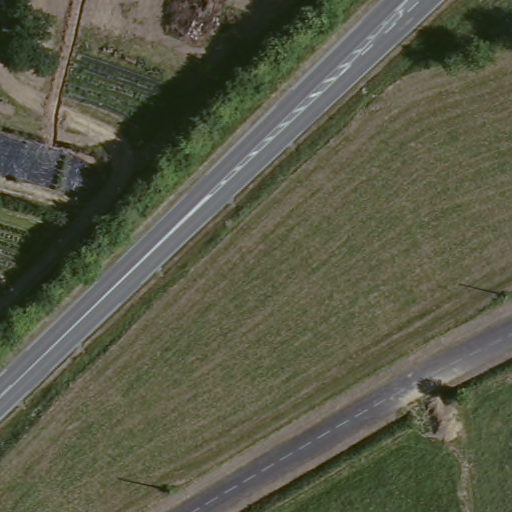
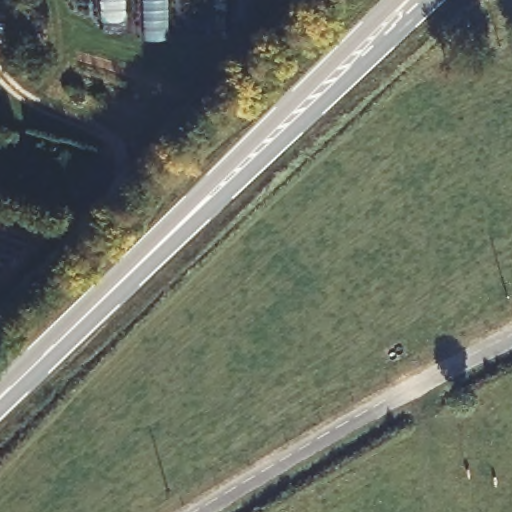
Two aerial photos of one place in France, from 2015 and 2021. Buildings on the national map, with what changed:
new [(103,20),(102,0),(123,0),(124,19),(103,20)]
new [(146,38),(145,0),(165,0),(167,38),(146,38)]

